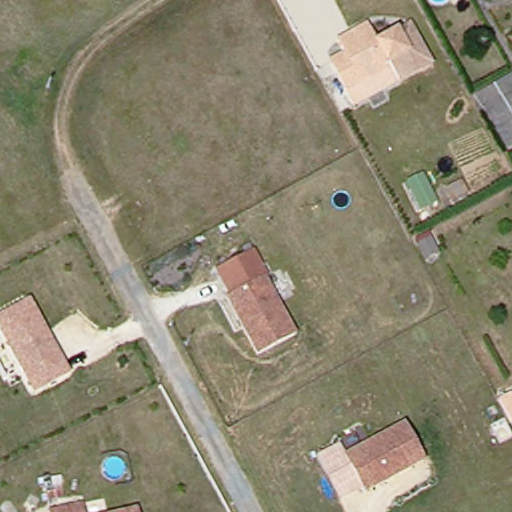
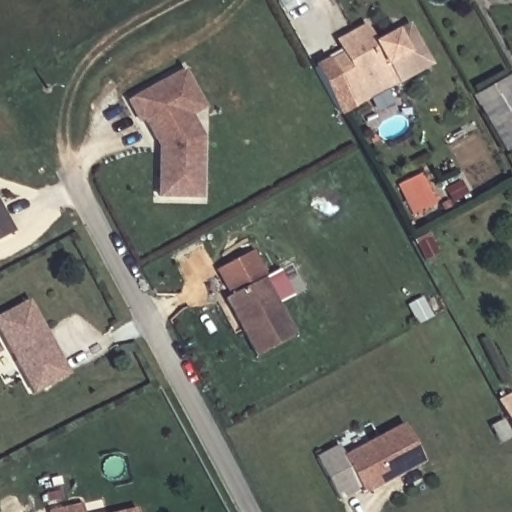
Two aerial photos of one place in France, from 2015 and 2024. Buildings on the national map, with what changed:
unchanged [(483,1),(482,0),(486,0),(483,1)]
unchanged [(345,95),(329,67),(344,59),(340,52),(337,46),(352,38),(367,30),(376,47),(409,29),(430,68),(398,86),(353,111),(345,95)]
new [(158,148),(145,122),(140,126),(127,102),(185,71),(206,110),(193,117),(204,138),(202,200),(158,198),(158,148)]
unchanged [(512,78),(512,148),(506,151),(473,96),(510,75),(512,78)]
unchanged [(467,196),(452,205),(445,192),(460,183),(467,196)]
new [(0,238),(0,198),(17,229),(0,238)]
unchanged [(430,241),(440,257),(435,259),(427,264),(417,248),(426,243),(430,241)]
unchanged [(255,258),(268,282),(265,283),(292,332),(254,353),(227,303),(232,300),(220,277),(255,258)]
unchanged [(0,338),(0,315),(26,300),(43,332),(48,340),(67,374),(31,394),(0,338)]
unchanged [(497,403),(510,396),(512,399),(512,431),(497,403)]
unchanged [(504,436),(495,440),(490,429),(498,425),(504,436)]
unchanged [(337,449),(342,459),(403,427),(423,464),(362,496),(359,491),(338,502),(315,460),(337,449)]
unchanged [(81,512),(47,512),(80,505),(81,512)]
unchanged [(135,512),(126,512),(135,510),(135,512)]

